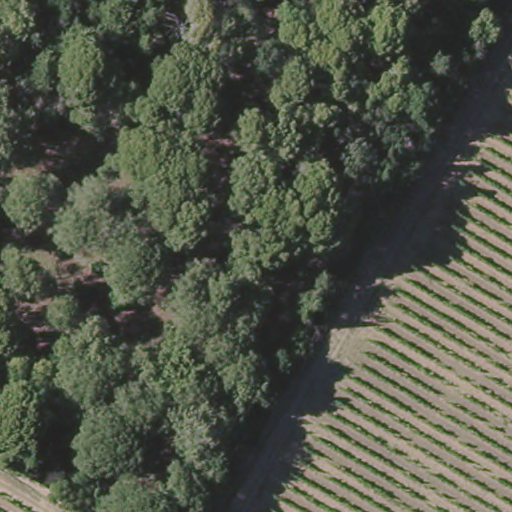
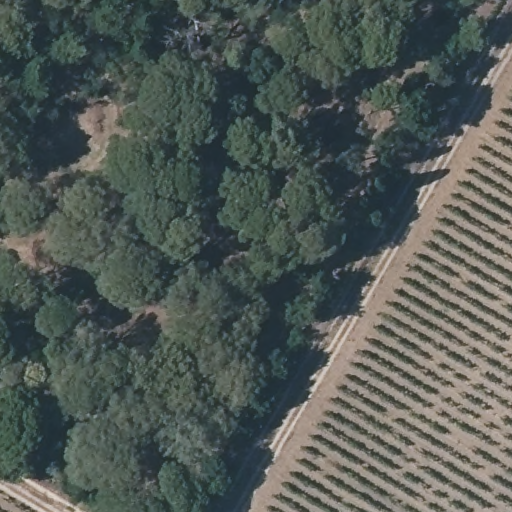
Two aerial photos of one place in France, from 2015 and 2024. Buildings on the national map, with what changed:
[]

